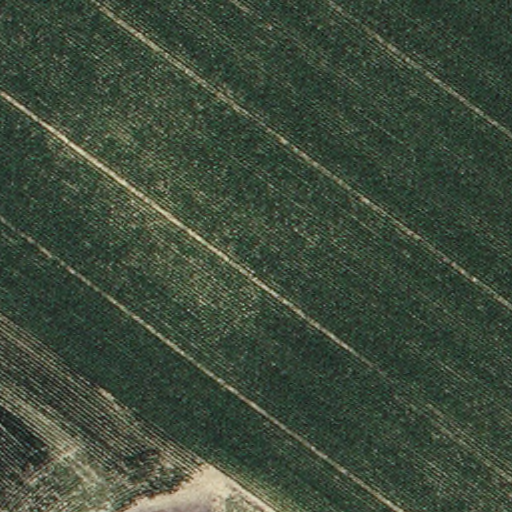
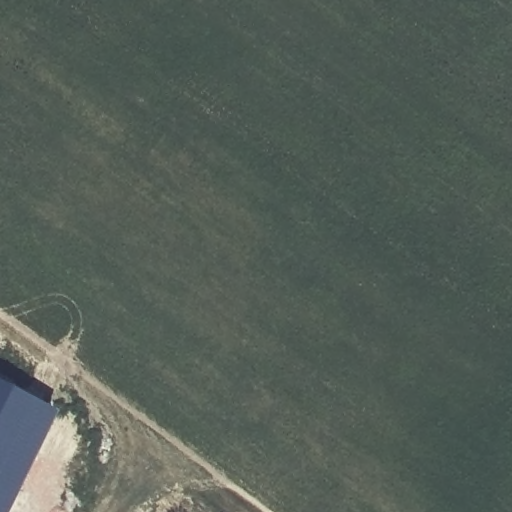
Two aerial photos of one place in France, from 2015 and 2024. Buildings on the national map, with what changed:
new [(0,390),(55,417),(8,512),(0,512),(0,390)]

